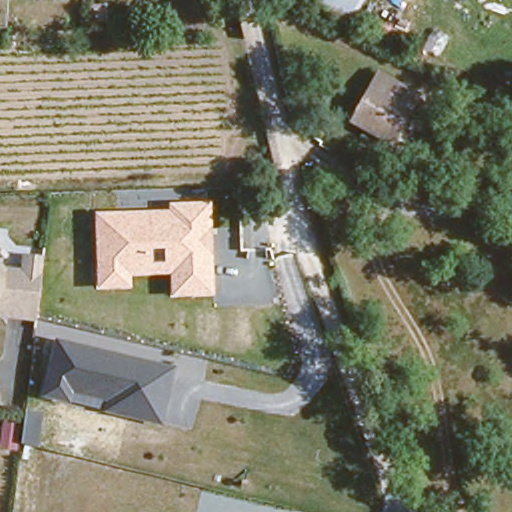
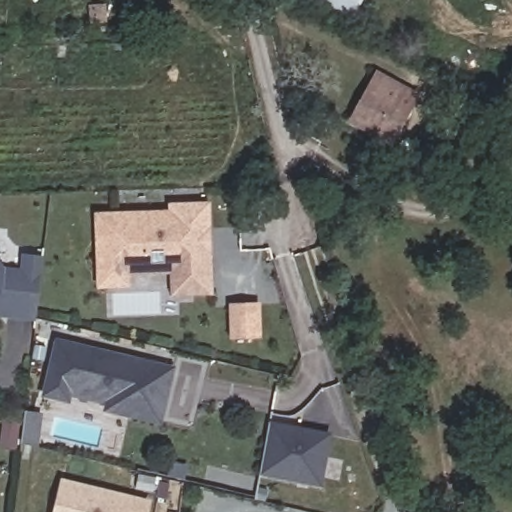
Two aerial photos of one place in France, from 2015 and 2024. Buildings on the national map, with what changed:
unchanged [(313,0),(361,0),(352,19),(313,0)]
unchanged [(384,140),(345,116),(374,69),(413,93),(384,140)]
unchanged [(278,181),(255,183),(247,144),(246,143),(250,142),(267,141),(278,181)]
unchanged [(215,294),(169,295),(168,274),(131,275),(132,288),(96,289),(94,214),(169,210),(168,203),(211,200),(215,294)]
unchanged [(22,260),(40,263),(31,322),(2,318),(0,317),(0,273),(20,275),(22,260)]
new [(259,304),(260,338),(233,339),(232,305),(259,304)]
unchanged [(160,422),(39,396),(50,339),(175,366),(160,422)]
new [(24,412),(39,414),(36,434),(34,448),(20,444),(21,432),(24,412)]
new [(268,421),(330,433),(320,487),(260,474),(268,421)]
new [(60,478),(151,499),(148,512),(51,512),(60,478)]

